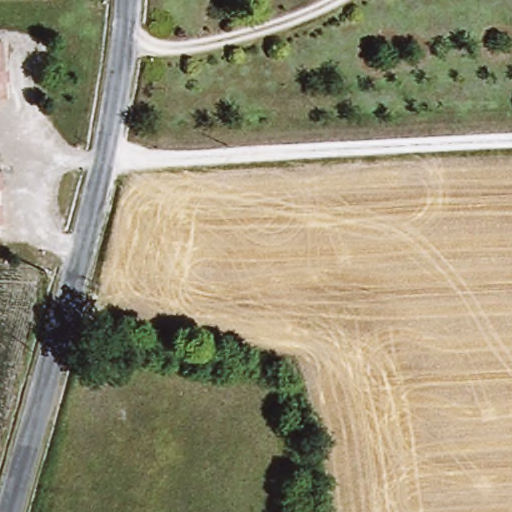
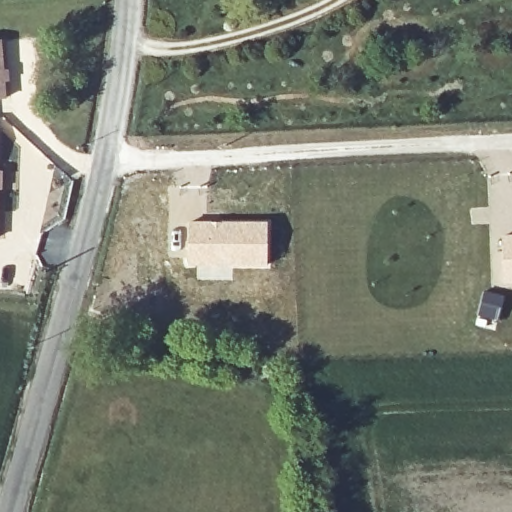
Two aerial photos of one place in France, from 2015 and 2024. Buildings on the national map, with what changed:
unchanged [(2,98),(0,98),(0,74),(2,98)]
new [(189,220),(268,221),(267,268),(232,267),(232,280),(196,279),(196,267),(185,267),(189,220)]
new [(502,237),(512,236),(512,283),(504,283),(502,237)]

